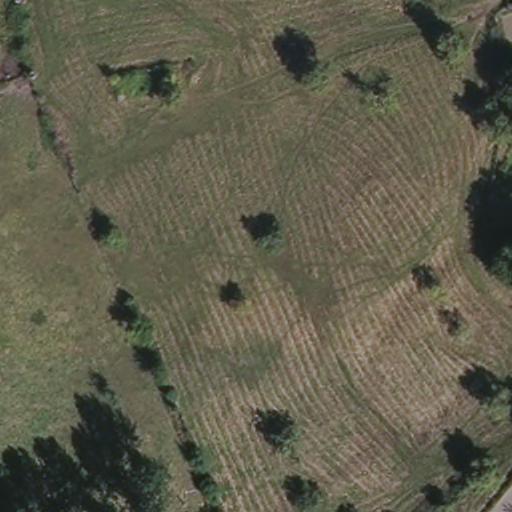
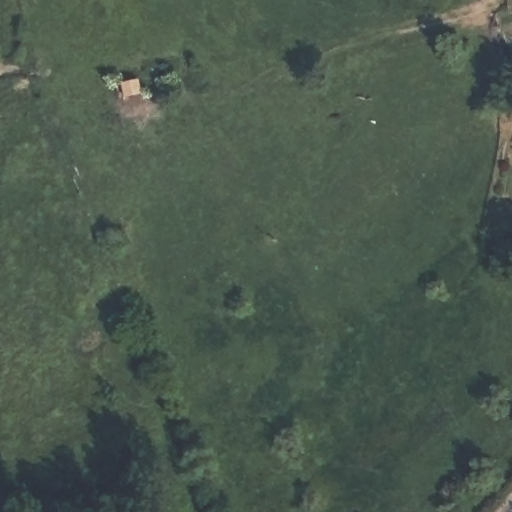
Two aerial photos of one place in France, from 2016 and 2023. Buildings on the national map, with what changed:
unchanged [(487,17),(493,15),(497,29),(490,30),(487,17)]
unchanged [(192,60),(197,84),(119,102),(114,78),(192,60)]

